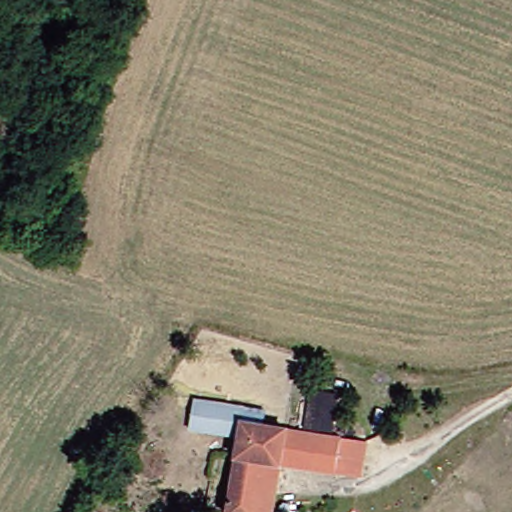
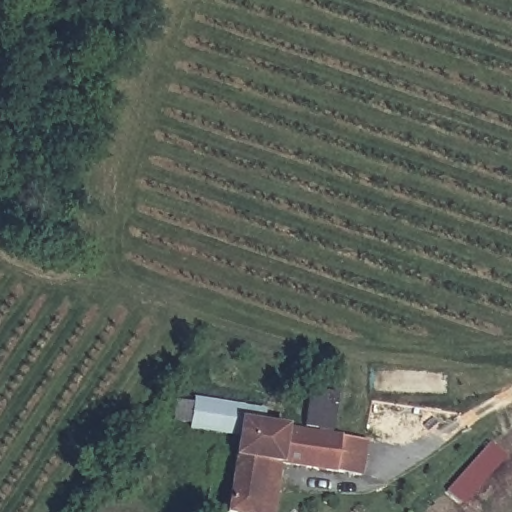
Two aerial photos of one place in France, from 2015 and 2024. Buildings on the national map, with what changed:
unchanged [(189,425),(172,423),(176,401),(193,404),(194,398),(266,411),(265,424),(239,420),(236,438),(188,431),(189,425)]
unchanged [(245,427),(366,445),(362,480),(278,468),(273,512),(232,512),(245,427)]
new [(446,492),(490,444),(506,459),(463,506),(446,492)]

